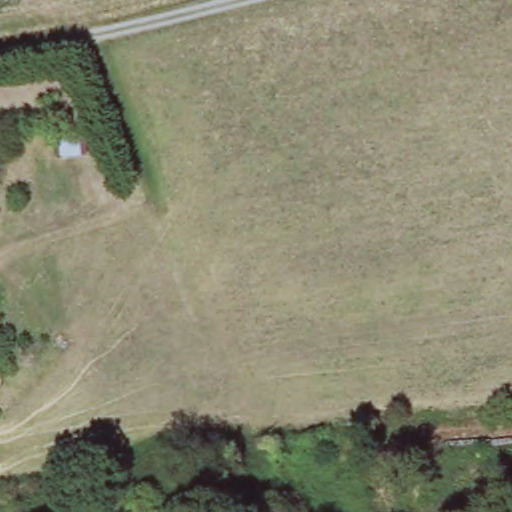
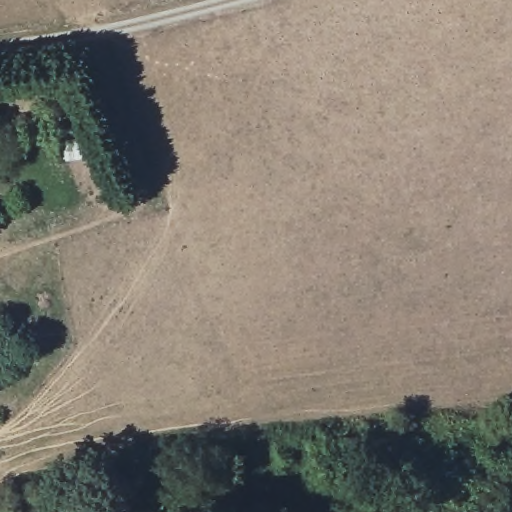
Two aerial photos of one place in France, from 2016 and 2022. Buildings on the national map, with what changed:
unchanged [(96,161),(81,163),(64,166),(61,144),(93,139),(96,161)]

